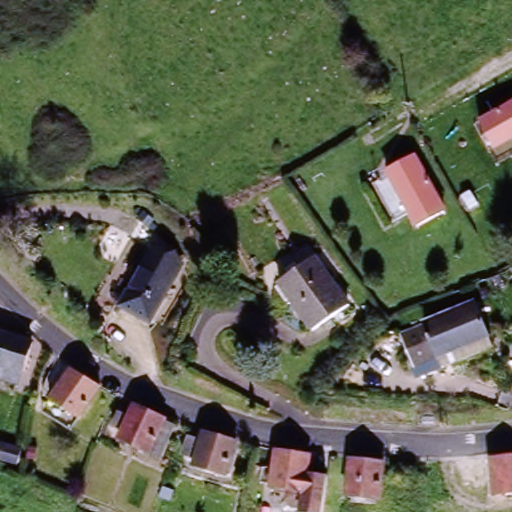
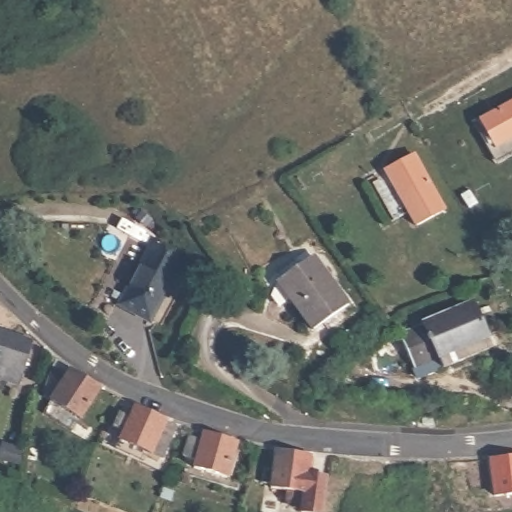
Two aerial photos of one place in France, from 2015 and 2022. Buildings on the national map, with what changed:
unchanged [(512,139),(500,146),(482,118),(512,99),(512,139)]
unchanged [(411,151),(445,207),(417,224),(384,168),(411,151)]
unchanged [(182,256),(157,314),(115,296),(127,268),(141,274),(155,244),(182,256)]
unchanged [(352,304),(338,314),(345,324),(324,340),(280,279),(315,253),(352,304)]
unchanged [(471,300),(488,333),(443,357),(425,324),(471,300)]
unchanged [(38,344),(22,386),(0,378),(0,340),(3,331),(38,344)]
unchanged [(106,389),(86,419),(57,402),(77,370),(106,389)]
unchanged [(136,418),(141,407),(172,422),(170,425),(180,429),(166,460),(125,442),(129,433),(120,429),(126,414),(136,418)]
unchanged [(242,468),(237,467),(231,481),(199,471),(201,462),(192,459),(196,448),(194,447),(197,440),(208,444),(212,435),(240,444),(248,446),(242,468)]
unchanged [(299,462),(295,482),(279,479),(262,476),(270,438),(302,444),(299,462)]
unchanged [(495,458),(512,455),(512,493),(500,495),(495,458)]
unchanged [(295,482),(299,462),(320,466),(312,506),(291,502),(292,498),(282,496),(277,488),(279,479),(295,482)]
unchanged [(387,505),(353,501),(356,463),(391,466),(387,505)]

